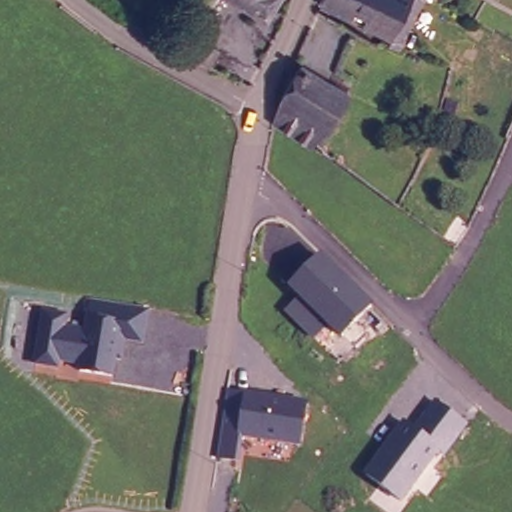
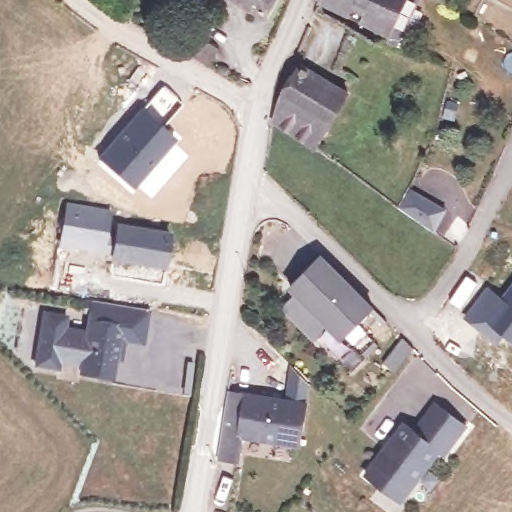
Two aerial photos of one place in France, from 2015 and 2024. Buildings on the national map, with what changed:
unchanged [(254,12),(233,0),(262,0),(254,12)]
unchanged [(419,39),(414,48),(390,36),(390,31),(318,0),(437,0),(419,39)]
unchanged [(181,28),(210,45),(198,63),(169,46),(181,28)]
unchanged [(322,151),(272,118),(278,109),(299,70),(295,67),(300,60),(357,92),(322,151)]
new [(150,195),(136,184),(133,187),(97,156),(124,124),(161,84),(179,100),(159,123),(176,139),(172,143),(185,155),(150,195)]
new [(409,186),(447,209),(435,231),(397,207),(409,186)]
new [(65,201),(112,209),(109,223),(114,224),(110,254),(58,245),(65,201)]
new [(110,254),(114,224),(114,221),(172,231),(164,268),(109,258),(110,254)]
unchanged [(346,336),(333,324),(319,339),(291,311),(304,297),(295,286),(323,257),(375,307),(346,336)]
new [(500,295),(512,280),(512,341),(504,335),(498,343),(464,317),(487,285),(500,295)]
unchanged [(100,373),(68,368),(70,360),(47,357),(46,364),(24,360),(33,308),(55,312),(53,324),(75,328),(80,296),(137,306),(134,326),(131,339),(113,336),(109,356),(103,355),(100,373)]
new [(402,337),(415,347),(395,372),(383,362),(402,337)]
unchanged [(308,401),(301,448),(244,439),(239,465),(217,460),(228,390),(308,401)]
unchanged [(412,429),(436,401),(469,424),(444,456),(439,453),(400,504),(363,474),(403,421),(412,429)]

